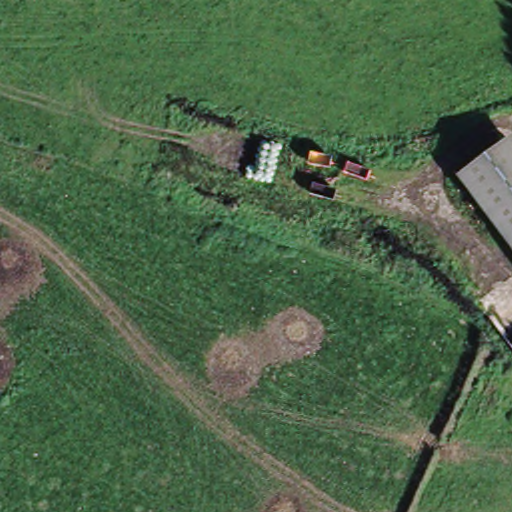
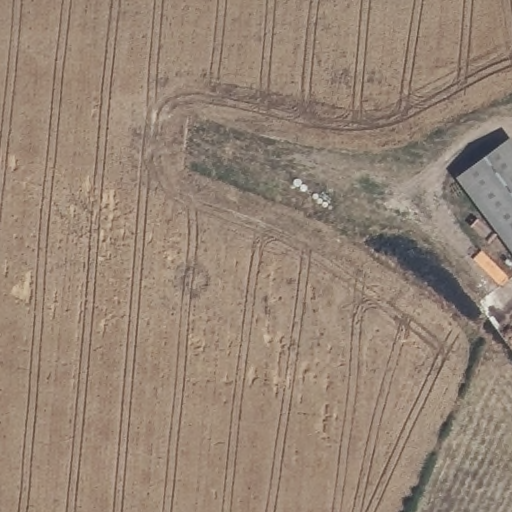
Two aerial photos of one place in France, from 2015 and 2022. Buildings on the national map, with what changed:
unchanged [(512,257),(449,177),(509,134),(512,139),(512,257)]

